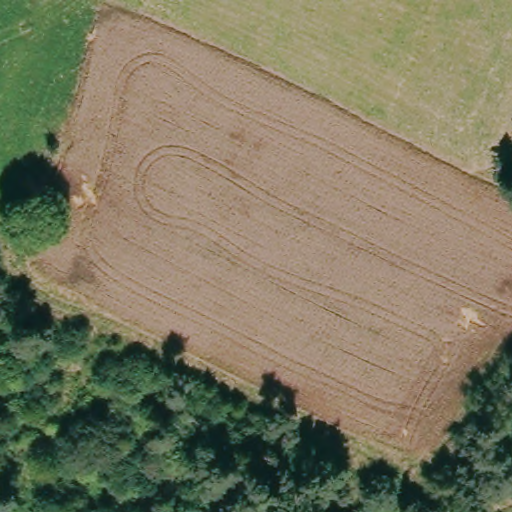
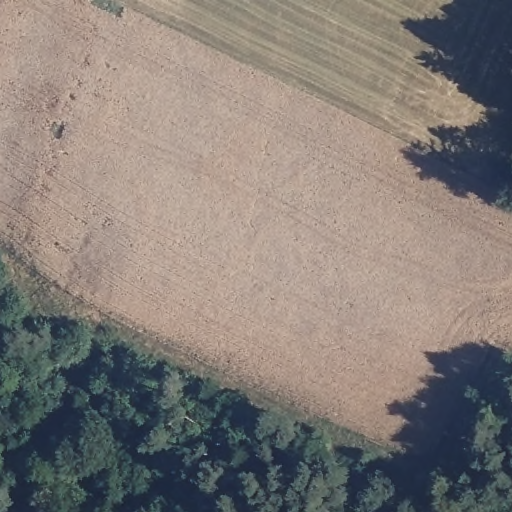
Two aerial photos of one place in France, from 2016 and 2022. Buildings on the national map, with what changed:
[]

